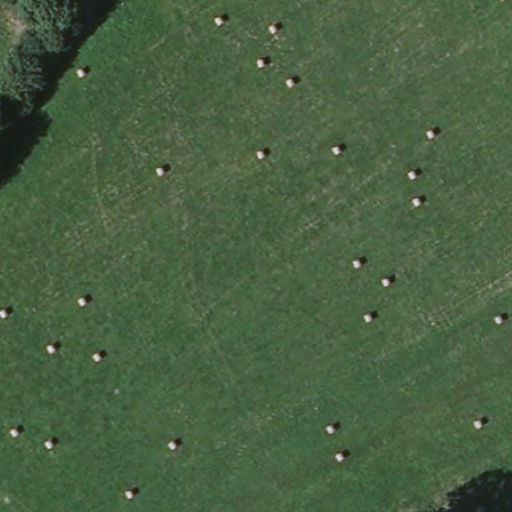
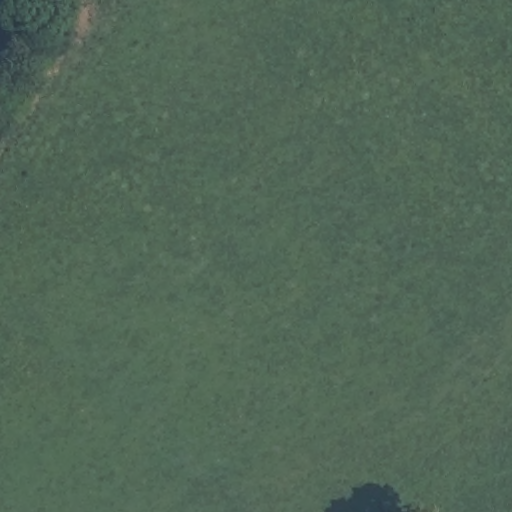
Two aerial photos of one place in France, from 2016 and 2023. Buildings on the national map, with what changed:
[]

